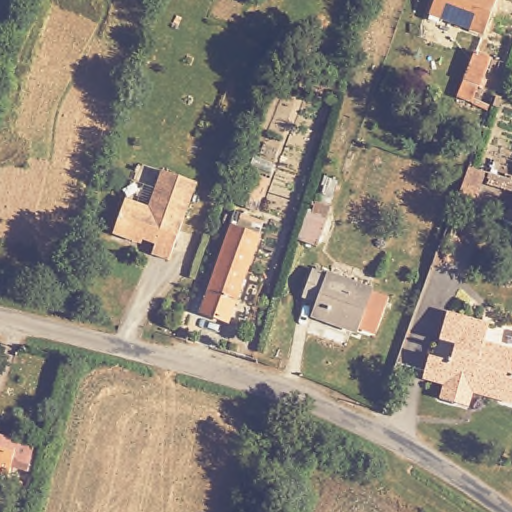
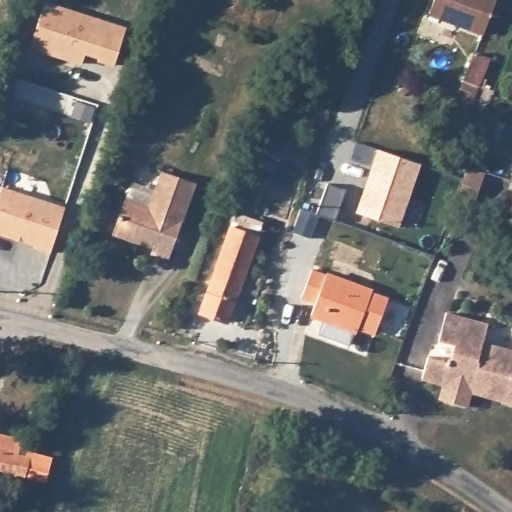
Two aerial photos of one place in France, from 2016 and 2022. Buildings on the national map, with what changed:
new [(45,0),(127,27),(116,67),(97,61),(97,59),(87,55),(82,66),(30,48),(45,0)]
unchanged [(502,0),(485,39),(441,19),(437,25),(430,21),(439,0),(502,0)]
unchanged [(492,52),(506,57),(487,102),(473,96),(492,52)]
new [(377,149),(421,164),(400,227),(355,212),(377,149)]
unchanged [(482,196),(467,189),(469,182),(478,161),(495,167),(482,196)]
unchanged [(129,192),(151,201),(166,165),(201,179),(170,255),(154,247),(157,237),(137,229),(135,233),(116,225),(129,192)]
new [(326,184),(344,190),(333,220),(315,215),(326,184)]
new [(2,186),(67,207),(52,254),(36,249),(37,246),(0,235),(0,191),(2,186)]
demolished [(323,231),(308,271),(295,266),(309,226),(323,231)]
unchanged [(242,230),(260,237),(225,321),(208,314),(242,230)]
unchanged [(323,306),(309,300),(320,273),(378,296),(362,335),(319,317),(323,306)]
unchanged [(426,379),(435,357),(455,365),(462,347),(445,341),(455,314),(497,330),(491,346),(512,354),(512,409),(497,404),(498,401),(487,397),(489,392),(478,388),(470,410),(442,400),(447,386),(426,379)]
unchanged [(16,482),(0,478),(0,442),(40,451),(33,480),(17,476),(16,482)]

